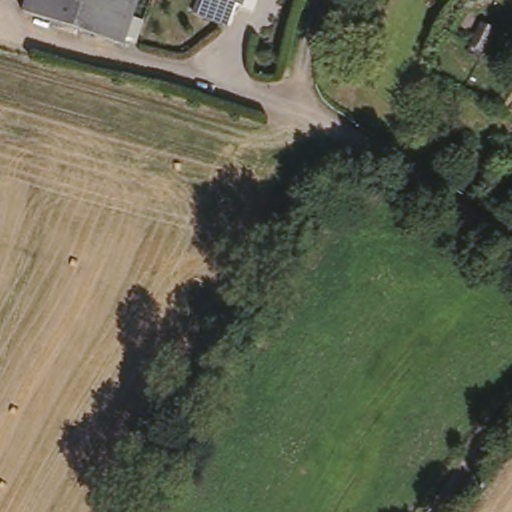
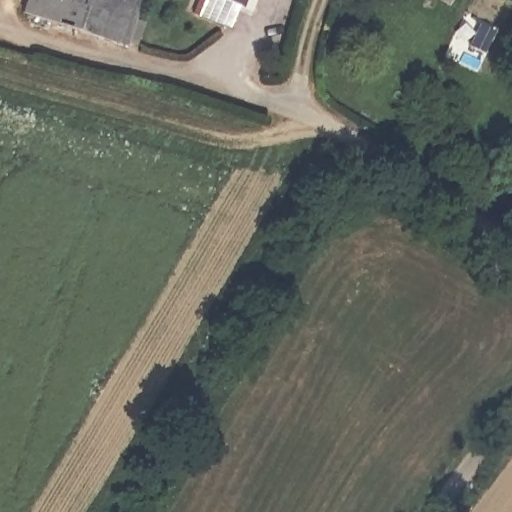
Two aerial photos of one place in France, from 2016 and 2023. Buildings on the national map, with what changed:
unchanged [(26,0),(144,0),(132,45),(21,15),(26,0)]
unchanged [(246,0),(244,5),(235,1),(226,26),(195,14),(200,0),(246,0)]
unchanged [(481,24),(493,31),(478,54),(466,45),(472,35),(481,24)]

